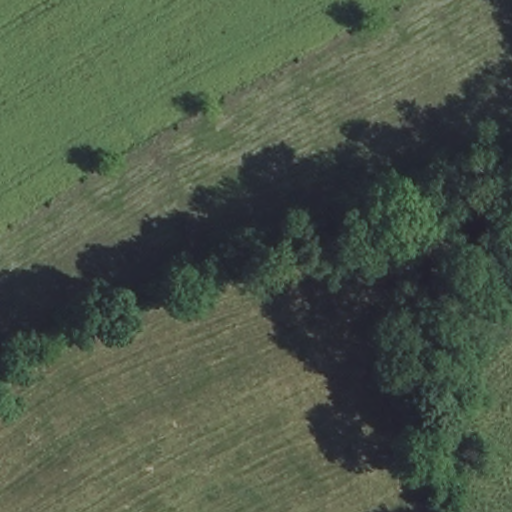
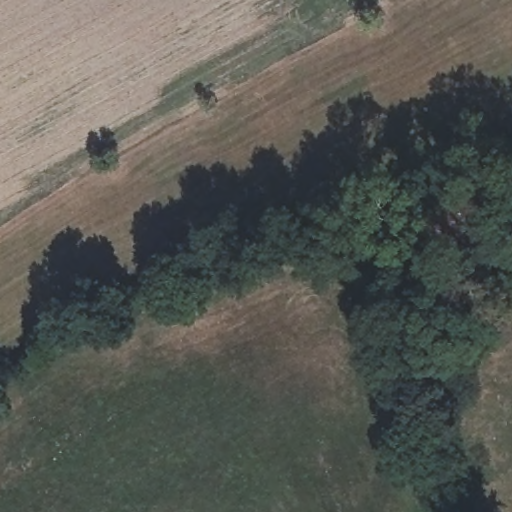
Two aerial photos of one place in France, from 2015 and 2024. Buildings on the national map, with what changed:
[]

